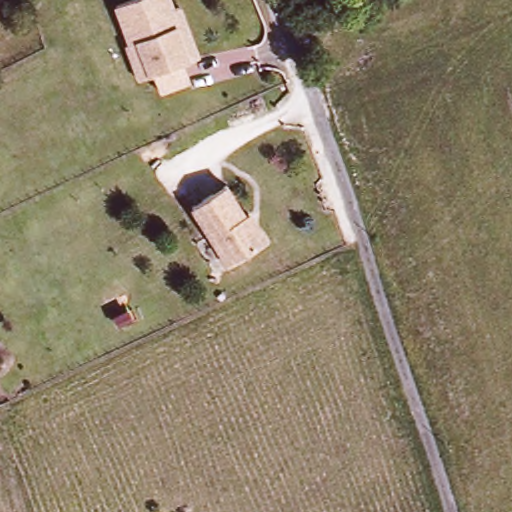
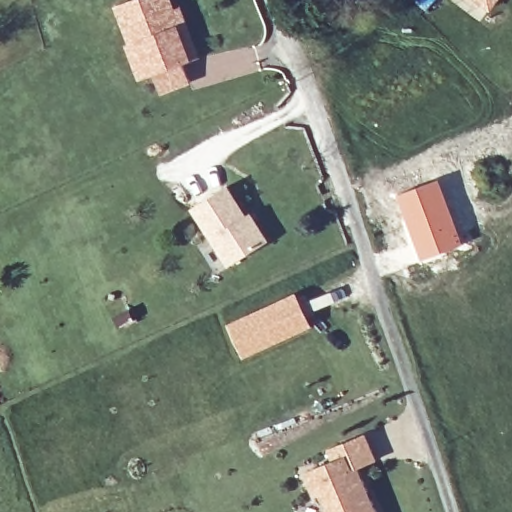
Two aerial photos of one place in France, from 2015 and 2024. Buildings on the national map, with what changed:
unchanged [(124,51),(129,50),(116,13),(153,0),(163,0),(170,18),(179,18),(195,66),(185,70),(181,71),(186,89),(158,99),(150,82),(137,87),(124,51)]
new [(490,12),(474,0),(499,0),(490,12)]
new [(438,179),(463,243),(420,261),(394,195),(438,179)]
unchanged [(234,269),(194,211),(229,190),(255,231),(261,231),(268,246),(234,269)]
new [(298,295),(312,324),(248,353),(235,325),(298,295)]
new [(377,463),(359,472),(376,512),(328,512),(321,493),(315,496),(306,472),(333,461),(328,449),(366,434),(377,463)]

